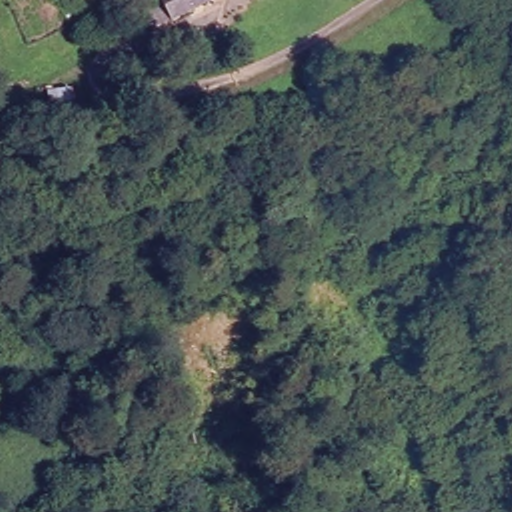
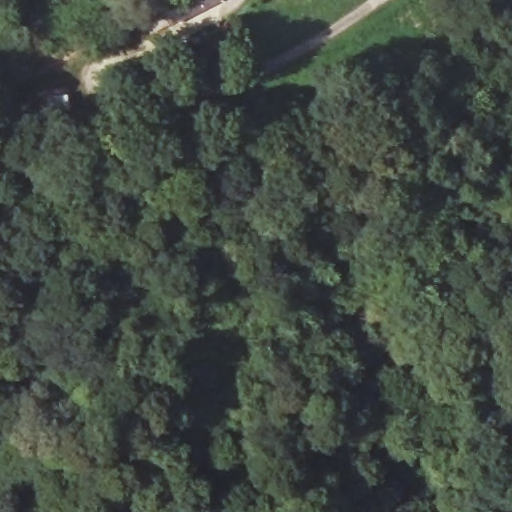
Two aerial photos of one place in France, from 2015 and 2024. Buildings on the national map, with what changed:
unchanged [(136,2),(139,0),(234,0),(156,38),(136,2)]

